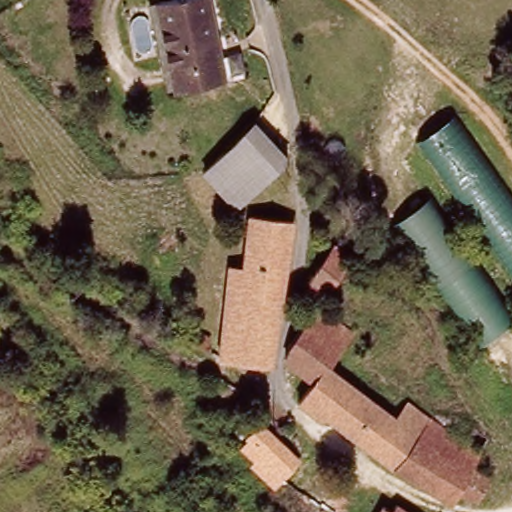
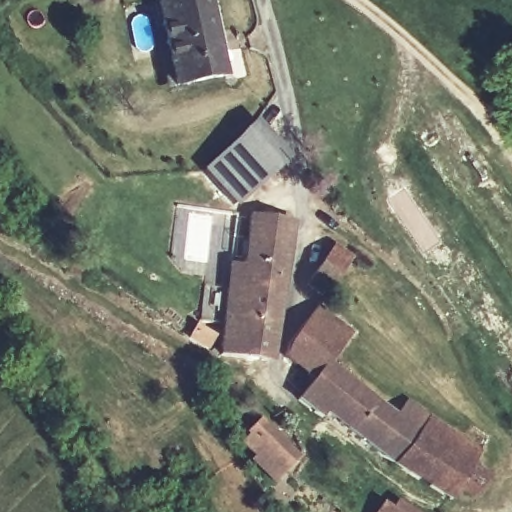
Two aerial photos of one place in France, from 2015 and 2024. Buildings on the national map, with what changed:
unchanged [(226,77),(177,86),(157,0),(208,0),(226,77)]
unchanged [(289,155),(233,206),(200,175),(243,131),(253,119),(289,155)]
demolished [(453,201),(410,155),(446,123),(488,169),(512,195),(512,266),(453,201)]
demolished [(396,223),(431,198),(512,310),(512,321),(481,342),(396,223)]
unchanged [(284,275),(276,327),(269,362),(242,358),(226,356),(217,353),(225,289),(240,290),(251,210),(290,214),(284,275)]
unchanged [(346,270),(332,291),(329,289),(313,275),(340,237),(358,250),(346,270)]
unchanged [(481,491),(467,481),(458,494),(453,504),(395,470),(326,419),(320,424),(297,406),(312,387),(286,364),(290,344),(318,310),(352,337),(331,367),(360,388),(401,418),(413,406),(467,443),(482,452),(473,468),(489,478),(481,491)]
unchanged [(192,321),(213,330),(208,344),(197,339),(185,333),(192,321)]
unchanged [(276,476),(257,458),(264,449),(261,446),(253,453),(247,448),(246,442),(254,431),(268,420),(279,432),(301,452),(276,476)]
unchanged [(338,491),(335,497),(327,492),(330,486),(338,491)]
unchanged [(393,511),(398,504),(410,512),(384,512),(387,507),(393,511)]

